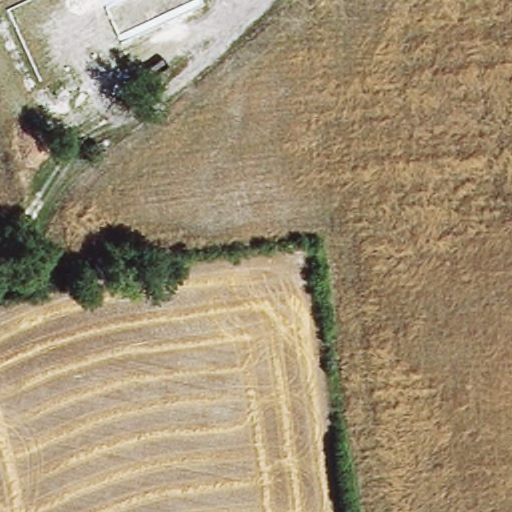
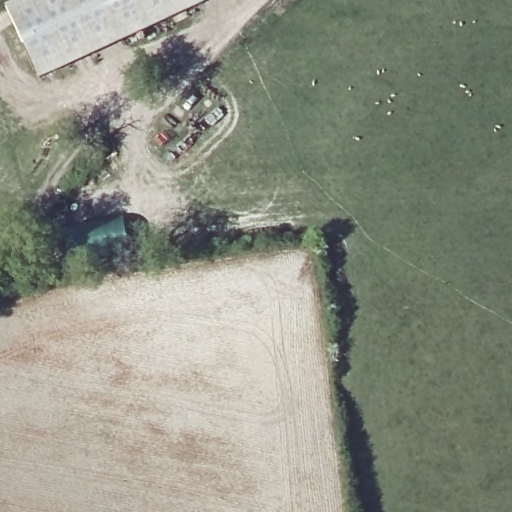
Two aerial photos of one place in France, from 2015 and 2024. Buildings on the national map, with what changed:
new [(206,3),(39,81),(4,8),(21,0),(205,0),(206,3)]

